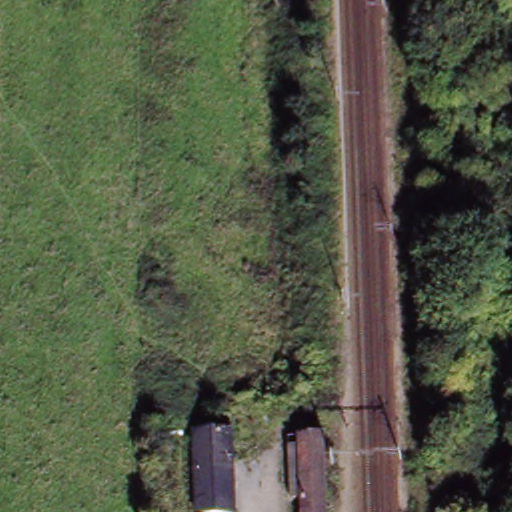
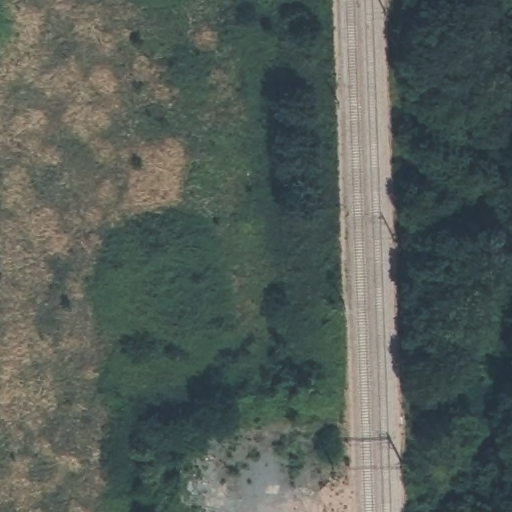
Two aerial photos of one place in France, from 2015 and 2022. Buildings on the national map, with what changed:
demolished [(232,433),(235,512),(198,512),(195,434),(232,433)]
demolished [(300,438),(322,437),(323,512),(302,512),(302,498),(300,438)]

